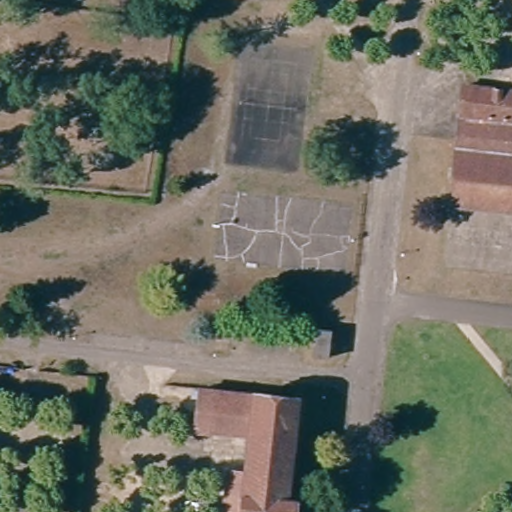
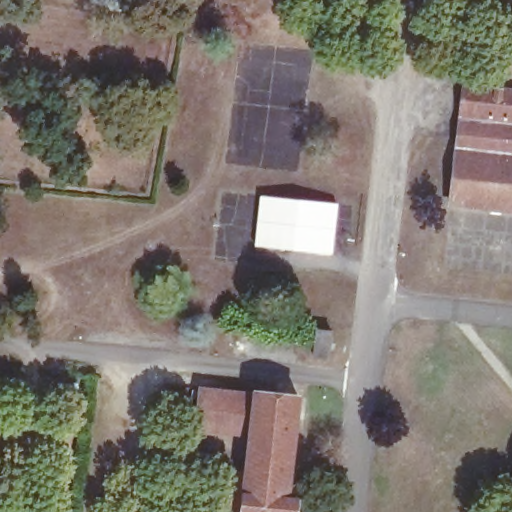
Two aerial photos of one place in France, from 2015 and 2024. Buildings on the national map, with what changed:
unchanged [(512,207),(453,200),(468,81),(512,87),(512,207)]
new [(259,194),(339,202),(332,257),(253,247),(259,194)]
unchanged [(332,362),(317,360),(320,335),(335,336),(332,362)]
unchanged [(235,467),(254,469),(260,421),(237,419),(222,418),(225,398),(227,378),(306,387),(295,488),(305,489),(303,509),(292,508),(292,512),(229,512),(235,467)]

